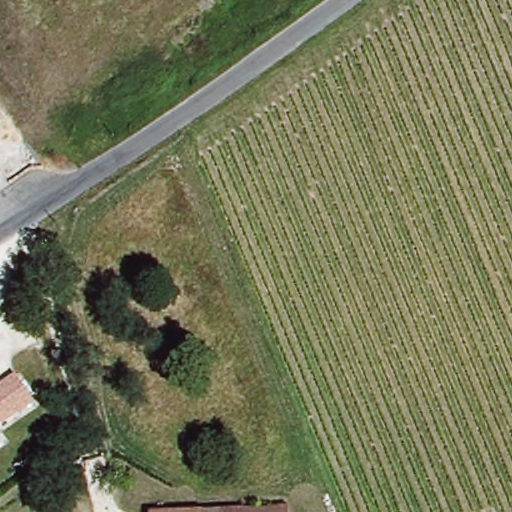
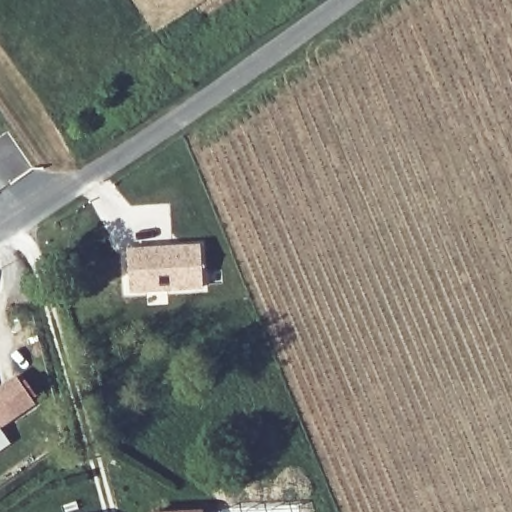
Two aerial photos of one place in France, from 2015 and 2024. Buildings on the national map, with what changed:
new [(201,242),(205,291),(127,294),(125,245),(201,242)]
unchanged [(15,373),(36,403),(0,426),(0,384),(15,373)]
unchanged [(294,512),(142,512),(293,508),(294,512)]

